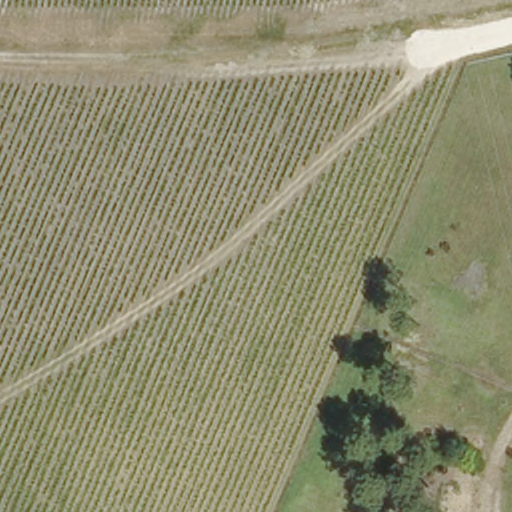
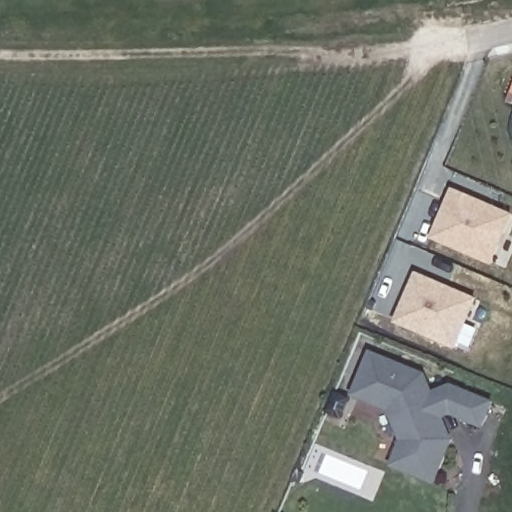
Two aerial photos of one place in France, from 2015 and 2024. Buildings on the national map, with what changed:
new [(512,214),(512,216),(491,264),(428,238),(450,187),(512,214)]
new [(414,270),(478,298),(456,349),(393,322),(414,270)]
new [(443,417),(453,441),(434,484),(390,466),(401,439),(388,411),(350,394),(369,348),(424,372),(432,389),(450,382),(495,400),(484,428),(451,414),(443,417)]
demolished [(435,512),(456,465),(488,477),(473,512),(435,512)]

